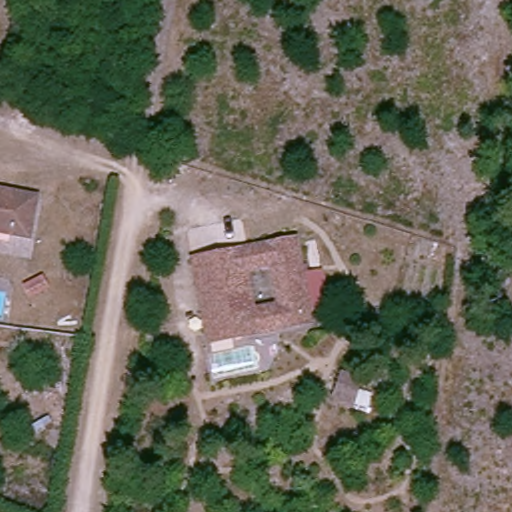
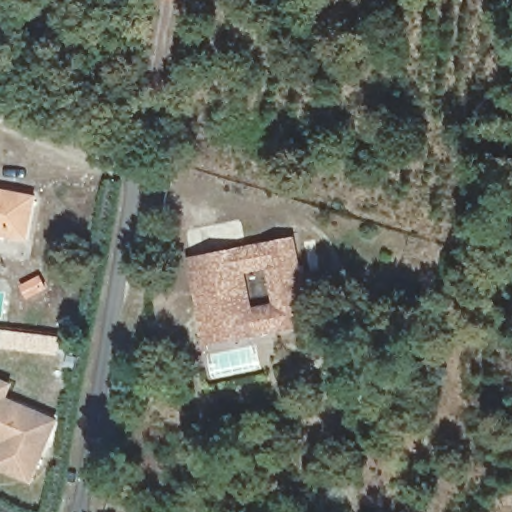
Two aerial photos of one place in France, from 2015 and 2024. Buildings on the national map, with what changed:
unchanged [(27,238),(0,232),(0,188),(36,196),(27,238)]
unchanged [(211,314),(200,262),(275,247),(302,241),(318,324),(240,340),(217,344),(211,314)]
unchanged [(44,285),(26,292),(21,282),(39,274),(44,285)]
new [(396,293),(421,297),(418,315),(393,311),(396,293)]
new [(59,356),(22,351),(2,348),(5,335),(24,337),(61,342),(59,356)]
unchanged [(361,407),(341,399),(349,376),(368,383),(361,407)]
new [(0,467),(0,446),(1,443),(0,443),(0,378),(15,385),(9,396),(61,419),(35,483),(0,467)]

